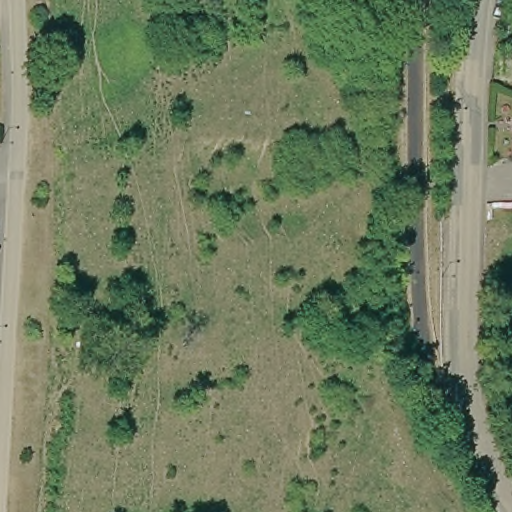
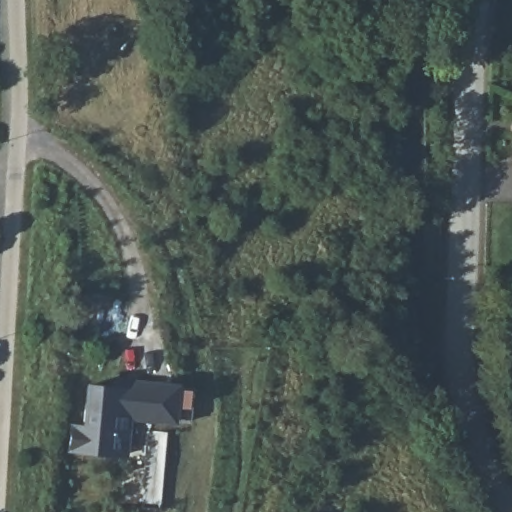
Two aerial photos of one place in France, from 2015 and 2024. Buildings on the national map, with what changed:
unchanged [(507,119),(512,119),(512,157),(506,157),(507,119)]
new [(177,385),(192,388),(189,425),(175,424),(130,420),(127,456),(71,451),(66,450),(69,427),(74,428),(75,425),(83,425),(88,386),(111,388),(113,379),(177,385)]

